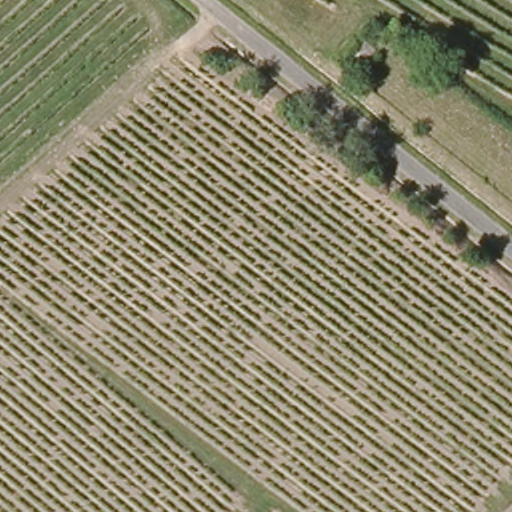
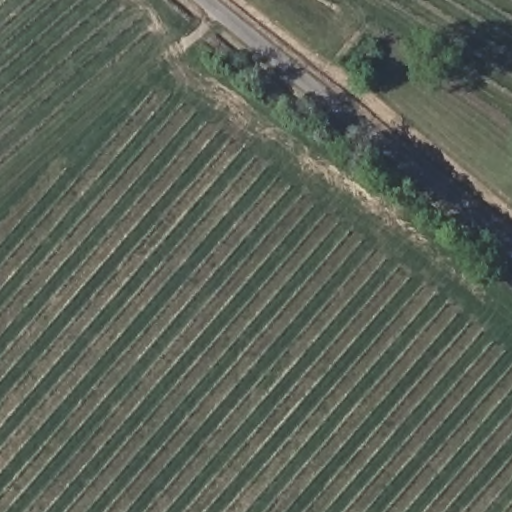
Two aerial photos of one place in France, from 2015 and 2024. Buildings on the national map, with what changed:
[]

